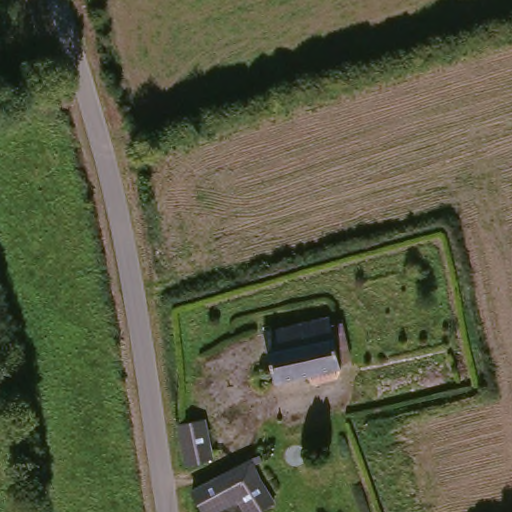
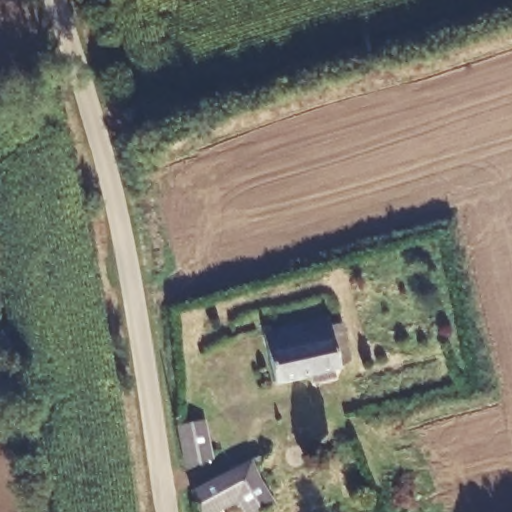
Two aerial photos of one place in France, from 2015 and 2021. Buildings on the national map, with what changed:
unchanged [(266,356),(285,351),(327,340),(329,344),(336,369),(275,387),(266,356)]
unchanged [(176,432),(202,426),(207,461),(183,464),(176,432)]
unchanged [(237,469),(242,476),(251,471),(274,511),(272,512),(246,512),(238,497),(213,512),(202,512),(192,495),(237,469)]

